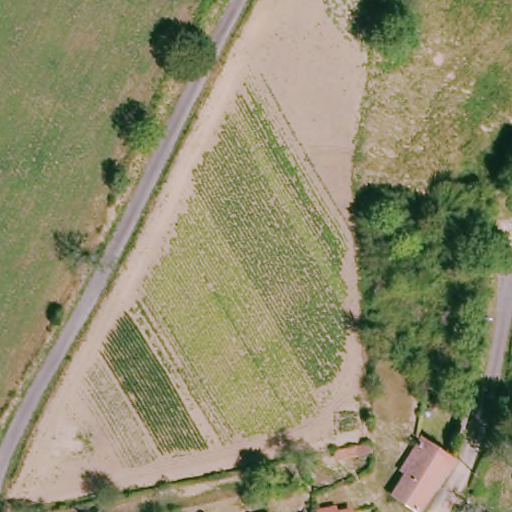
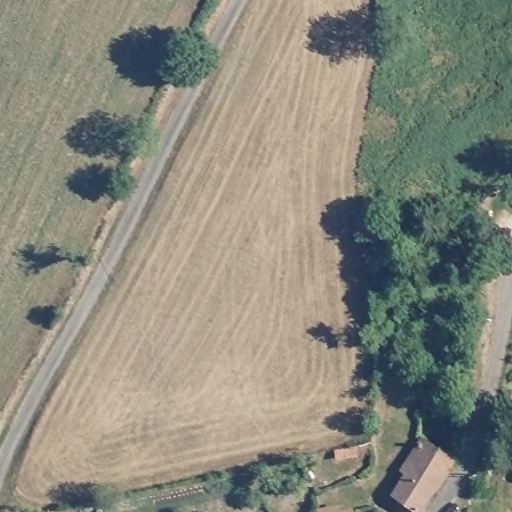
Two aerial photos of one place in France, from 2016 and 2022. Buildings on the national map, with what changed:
unchanged [(413,477),(404,470),(420,443),(452,463),(422,512),(417,512),(398,499),(413,477)]

